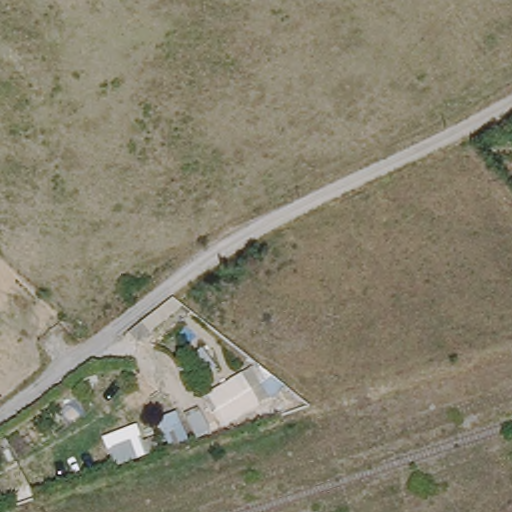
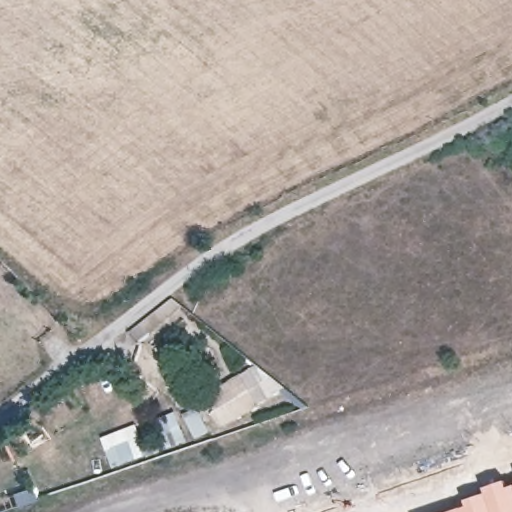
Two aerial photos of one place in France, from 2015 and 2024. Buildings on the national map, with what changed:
unchanged [(206,396),(260,364),(293,395),(228,425),(206,396)]
new [(468,503),(467,499),(487,492),(486,487),(512,478),(512,512),(445,512),(468,503)]

